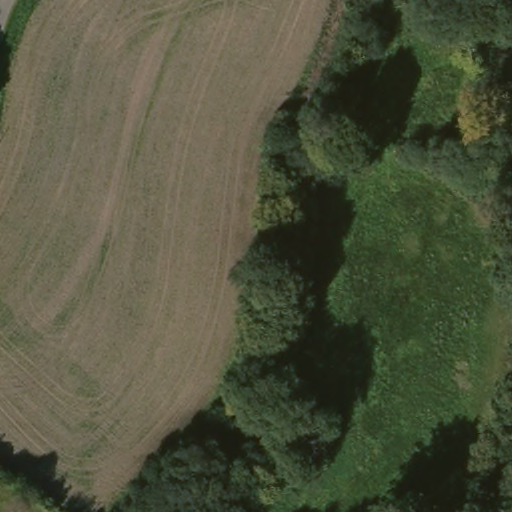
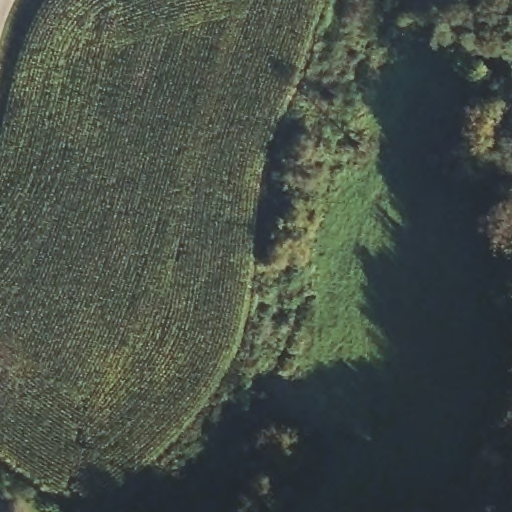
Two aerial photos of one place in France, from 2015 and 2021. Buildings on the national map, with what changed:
[]

